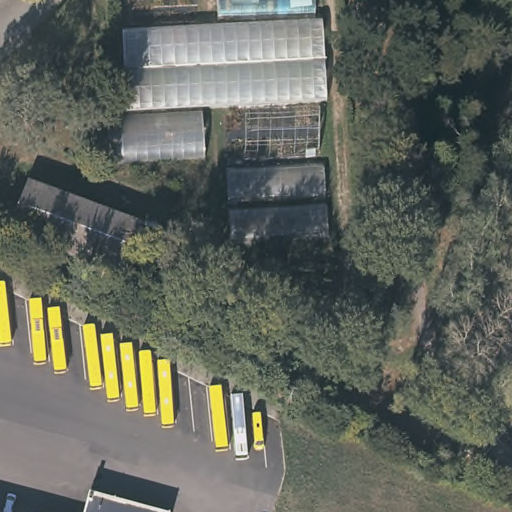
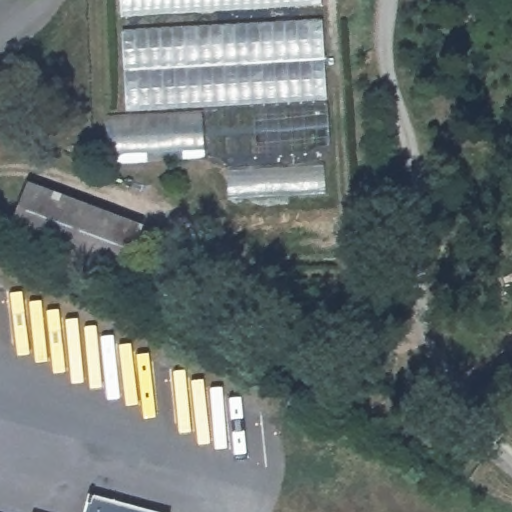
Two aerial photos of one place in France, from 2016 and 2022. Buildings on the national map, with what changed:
unchanged [(128,107),(127,56),(218,53),(216,0),(320,0),(323,188),(226,193),(222,103),(128,107)]
unchanged [(143,223),(124,275),(7,232),(27,182),(143,223)]
unchanged [(85,496),(149,512),(81,512),(85,496)]

